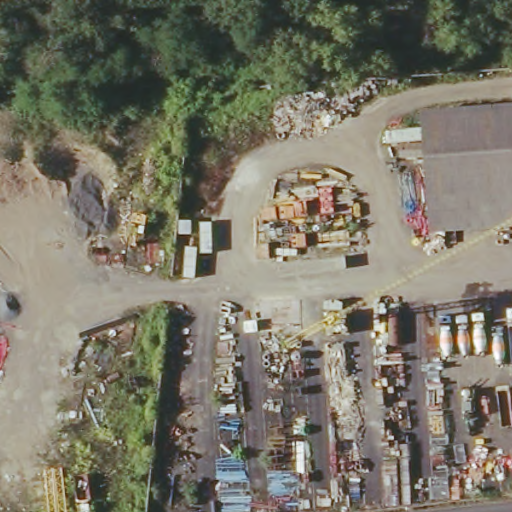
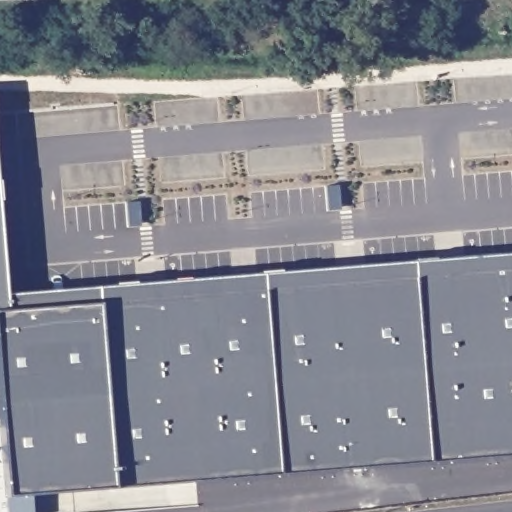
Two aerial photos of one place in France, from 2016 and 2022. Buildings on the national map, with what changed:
new [(8,498),(0,398),(0,197),(8,296),(512,254),(512,455),(114,489),(8,498)]

